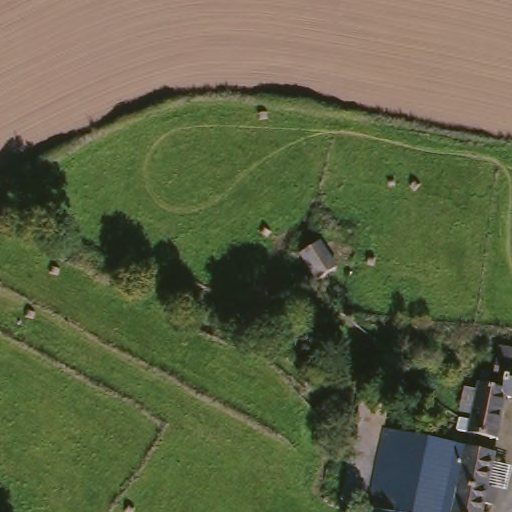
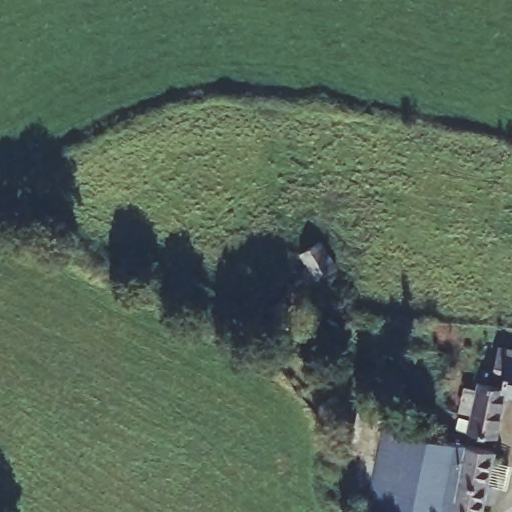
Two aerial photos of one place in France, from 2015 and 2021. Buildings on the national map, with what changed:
unchanged [(322,240),(337,261),(318,276),(304,256),(302,254),(322,240)]
unchanged [(506,392),(507,385),(511,357),(512,358),(512,394),(506,392)]
unchanged [(461,417),(471,419),(471,418),(479,381),(507,385),(506,392),(499,436),(470,431),(460,428),(461,417)]
unchanged [(365,398),(390,402),(386,428),(427,436),(416,512),(401,512),(347,503),(365,398)]
unchanged [(458,512),(416,512),(427,436),(455,440),(470,442),(458,512)]
unchanged [(470,442),(501,447),(490,512),(458,512),(470,442)]

